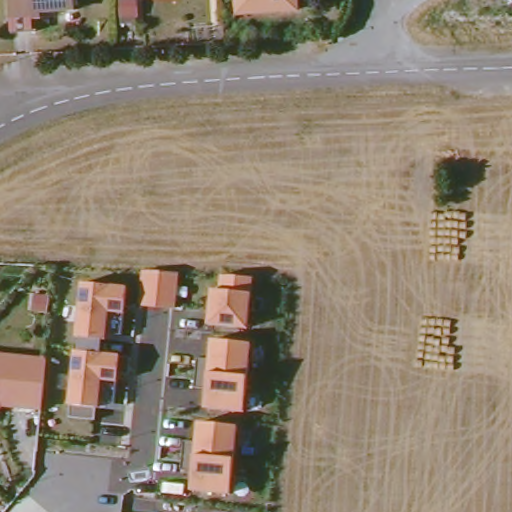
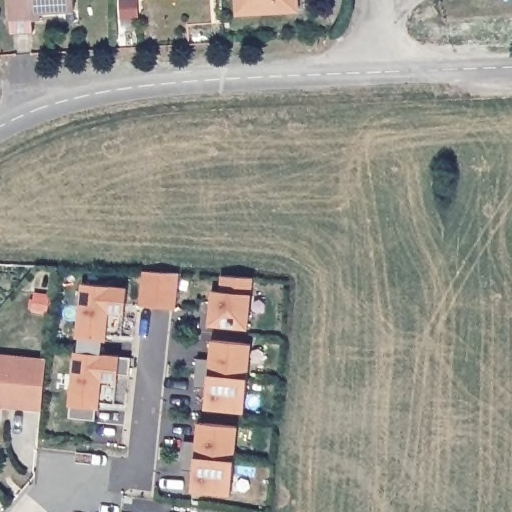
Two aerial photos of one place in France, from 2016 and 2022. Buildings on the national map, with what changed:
unchanged [(10,16),(9,0),(73,0),(74,13),(10,16)]
unchanged [(231,9),(231,0),(285,0),(285,7),(231,9)]
unchanged [(182,275),(179,312),(140,307),(144,272),(182,275)]
unchanged [(255,280),(252,330),(210,326),(215,291),(220,291),(221,277),(255,280)]
unchanged [(130,287),(125,337),(109,336),(109,341),(104,340),(102,355),(122,357),(122,358),(132,359),(130,378),(120,377),(117,406),(101,405),(101,409),(97,408),(95,423),(70,420),(71,406),(76,351),(80,352),(81,338),(77,337),(82,282),(130,287)]
unchanged [(254,345),(247,414),(206,410),(212,342),(254,345)]
unchanged [(5,411),(0,415),(0,355),(47,361),(42,413),(5,411)]
unchanged [(234,497),(192,495),(199,423),(242,427),(234,497)]

